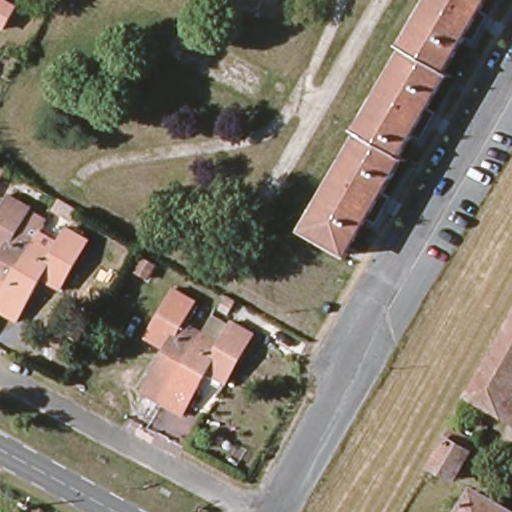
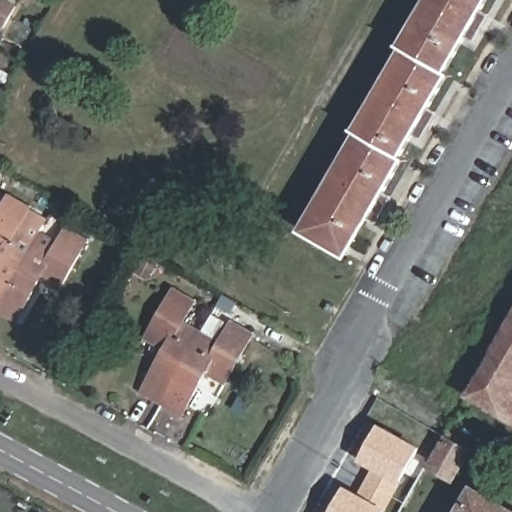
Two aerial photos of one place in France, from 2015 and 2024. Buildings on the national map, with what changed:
unchanged [(344,259),(301,233),(431,0),(487,0),(344,259)]
unchanged [(3,35),(0,34),(0,3),(16,13),(3,35)]
unchanged [(0,164),(6,168),(0,179),(0,164)]
unchanged [(29,206),(18,229),(36,240),(0,304),(0,210),(9,195),(29,206)]
unchanged [(54,249),(66,226),(89,239),(59,291),(42,280),(17,322),(0,311),(0,304),(36,240),(54,249)]
unchanged [(145,398),(168,357),(144,342),(174,290),(196,304),(183,328),(203,339),(163,408),(145,398)]
unchanged [(507,406),(474,387),(512,319),(512,396),(507,406)]
unchanged [(203,339),(216,346),(228,322),(252,334),(222,389),(203,378),(179,418),(163,408),(203,339)]
unchanged [(512,396),(512,409),(507,406),(512,396)]
new [(386,512),(331,512),(347,486),(360,494),(374,470),(360,461),(381,424),(423,448),(386,512)]
unchanged [(448,434),(471,448),(452,483),(428,469),(448,434)]
unchanged [(512,509),(512,512),(464,512),(478,489),(512,509)]

